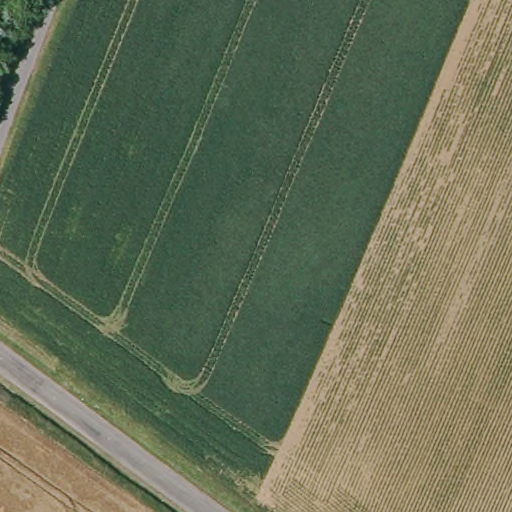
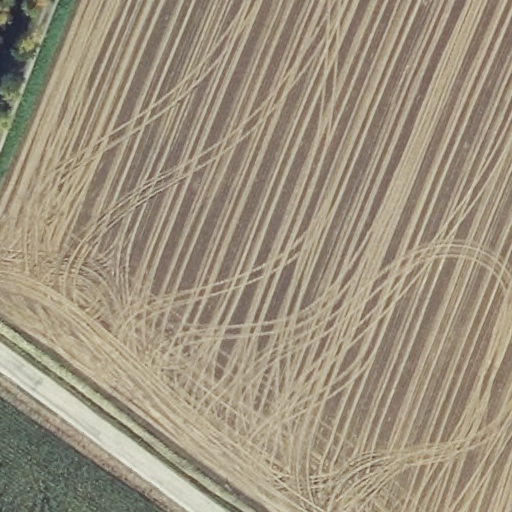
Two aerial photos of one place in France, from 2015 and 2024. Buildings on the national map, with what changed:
[]

